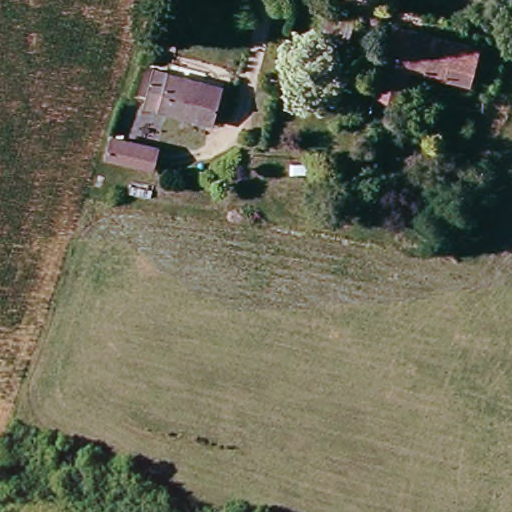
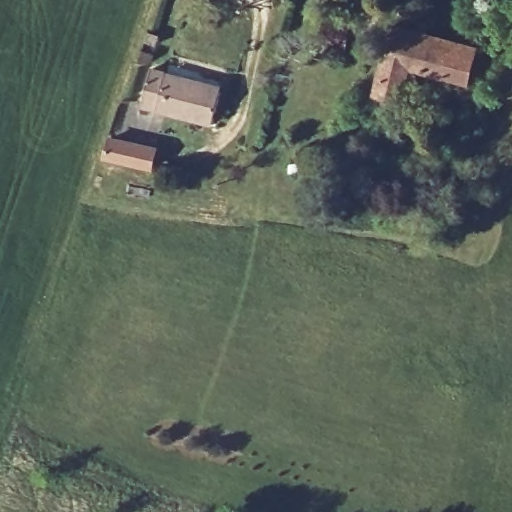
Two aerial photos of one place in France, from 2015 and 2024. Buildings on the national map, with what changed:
unchanged [(346,49),(322,44),(330,6),(355,12),(346,49)]
unchanged [(380,88),(395,24),(478,43),(470,79),(411,65),(405,95),(380,88)]
unchanged [(212,116),(147,99),(155,70),(220,87),(212,116)]
unchanged [(158,147),(152,166),(105,152),(111,131),(158,147)]

